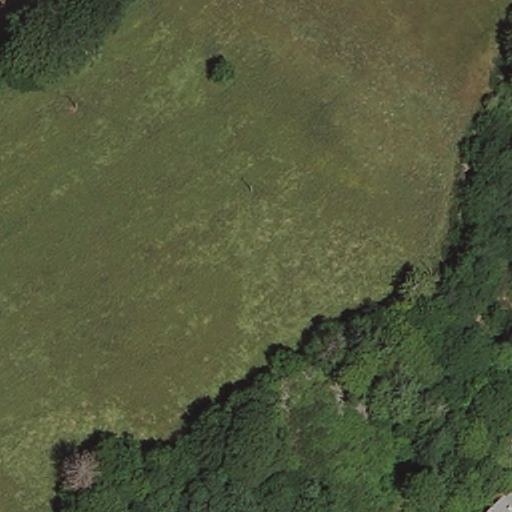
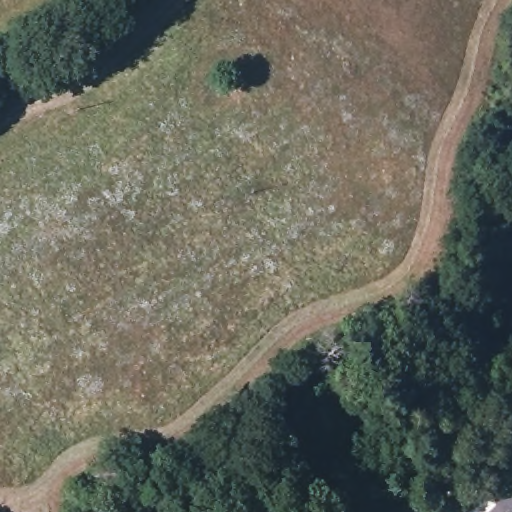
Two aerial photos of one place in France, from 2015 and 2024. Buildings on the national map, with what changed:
unchanged [(512,423),(512,453),(495,446),(502,420),(512,423)]
unchanged [(510,483),(512,474),(512,484),(510,483)]
unchanged [(485,486),(494,477),(505,485),(512,489),(512,512),(481,512),(496,495),(485,486)]

